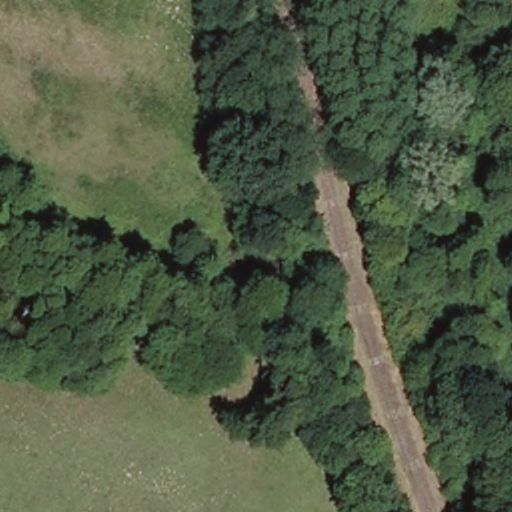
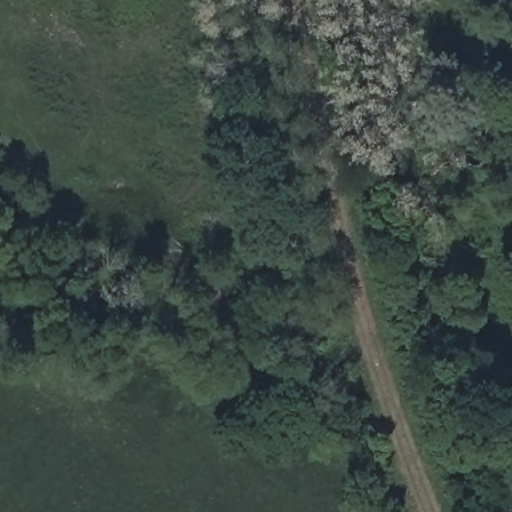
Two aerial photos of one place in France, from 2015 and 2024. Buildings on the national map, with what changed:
[]

